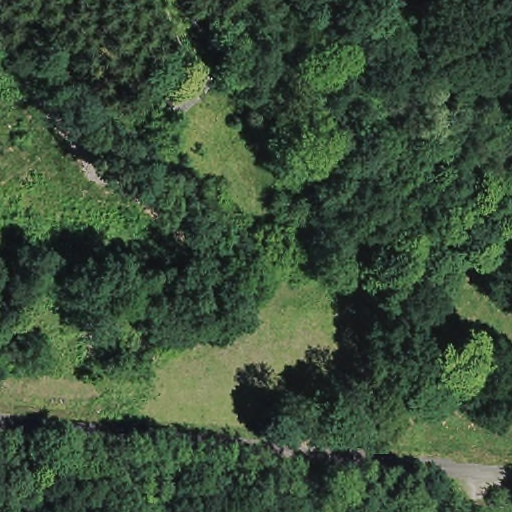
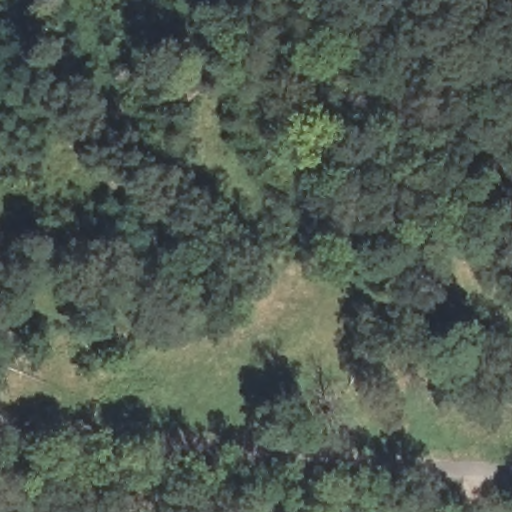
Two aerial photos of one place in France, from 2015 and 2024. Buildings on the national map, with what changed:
unchanged [(209,87),(176,120),(164,100),(197,71),(209,87)]

